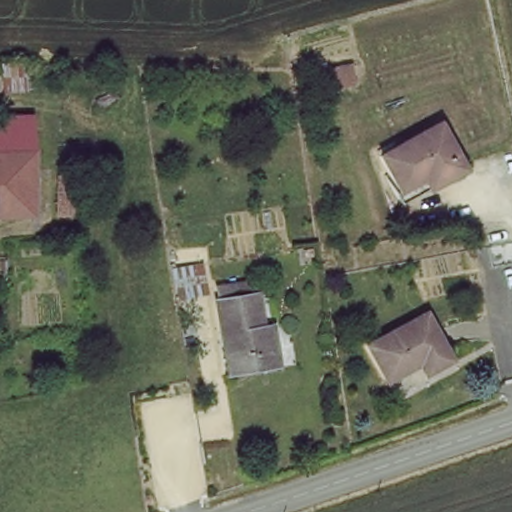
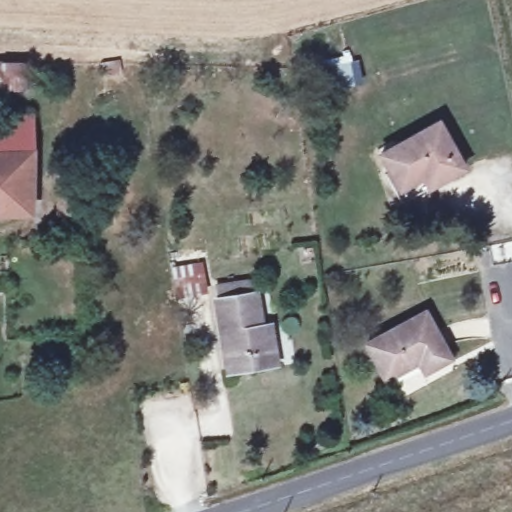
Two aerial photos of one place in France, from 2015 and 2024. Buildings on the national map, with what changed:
unchanged [(62,95),(0,95),(0,65),(61,63),(62,95)]
unchanged [(325,73),(354,67),(357,86),(328,92),(325,73)]
unchanged [(30,139),(0,141),(0,120),(30,118),(30,139)]
unchanged [(402,193),(382,158),(440,126),(466,172),(447,182),(408,204),(402,193)]
unchanged [(31,209),(0,211),(0,141),(30,139),(31,209)]
unchanged [(56,215),(55,177),(74,177),(75,214),(56,215)]
unchanged [(252,301),(258,330),(267,330),(272,366),(223,375),(212,309),(252,301)]
unchanged [(451,365),(429,375),(423,364),(385,383),(365,347),(425,317),(451,365)]

